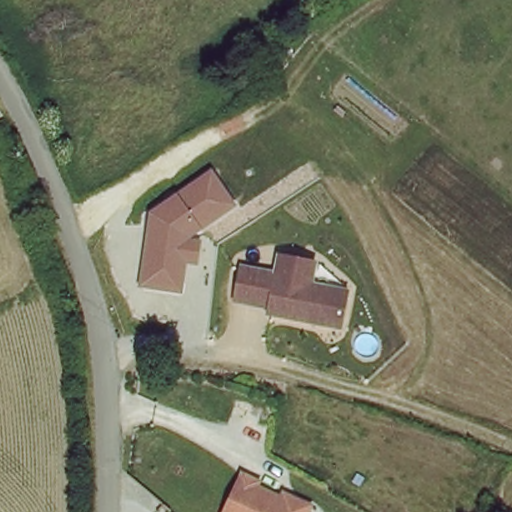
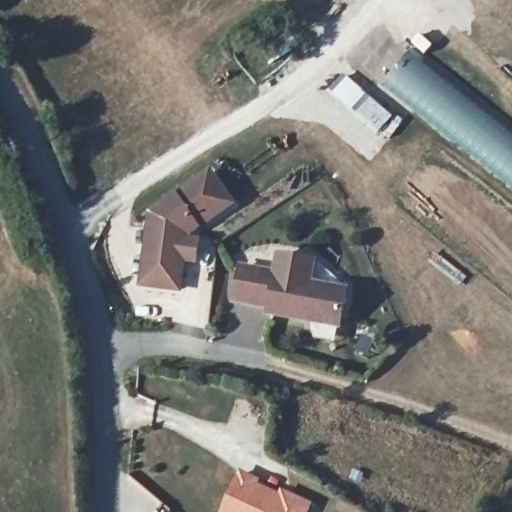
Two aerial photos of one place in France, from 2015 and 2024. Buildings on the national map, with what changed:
new [(410,50),(512,129),(512,188),(382,86),(410,50)]
new [(329,91),(344,75),(393,120),(379,135),(329,91)]
unchanged [(231,204),(186,236),(184,240),(178,240),(176,258),(186,260),(181,290),(141,285),(153,215),(211,175),(231,204)]
unchanged [(339,329),(268,315),(269,308),(231,301),(238,266),(271,271),(274,255),(316,262),(312,281),(348,289),(339,329)]
unchanged [(304,503),(301,512),(215,512),(231,473),(304,503)]

